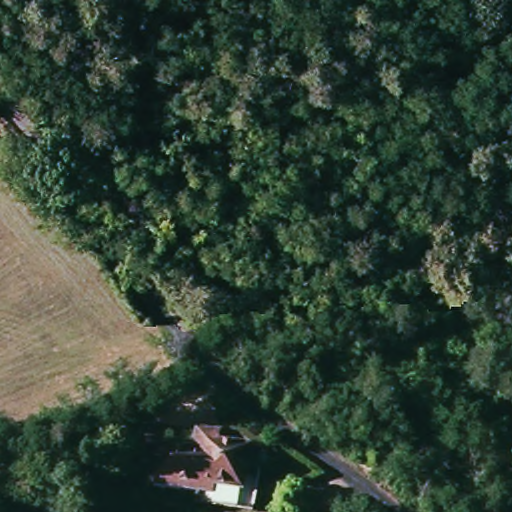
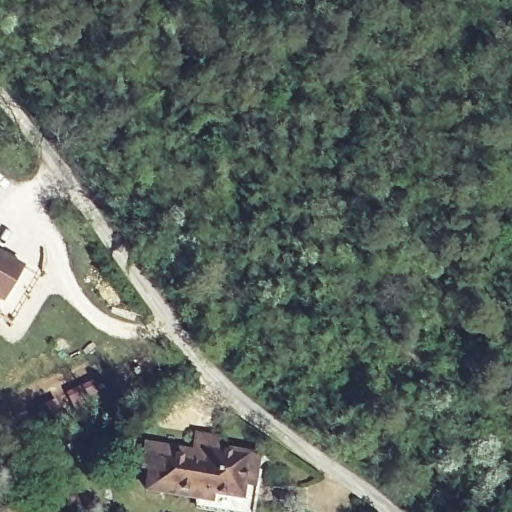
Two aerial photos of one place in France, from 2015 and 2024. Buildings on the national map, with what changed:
unchanged [(379,136),(359,128),(368,109),(387,117),(379,136)]
new [(26,267),(6,300),(0,297),(0,251),(26,267)]
unchanged [(156,491),(158,469),(153,468),(156,442),(201,446),(203,433),(228,437),(226,446),(258,451),(272,452),(266,482),(253,479),(251,491),(223,488),(221,498),(206,496),(156,491)]

